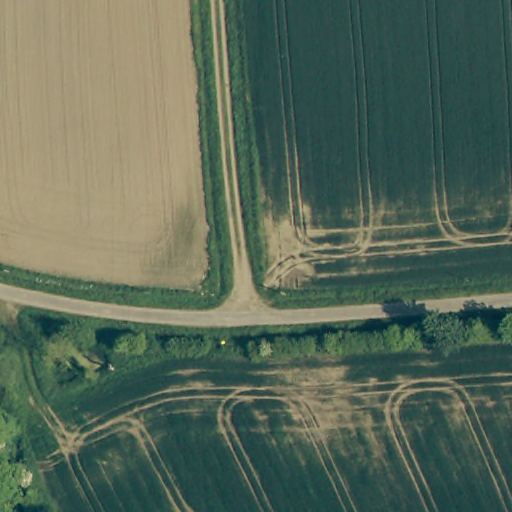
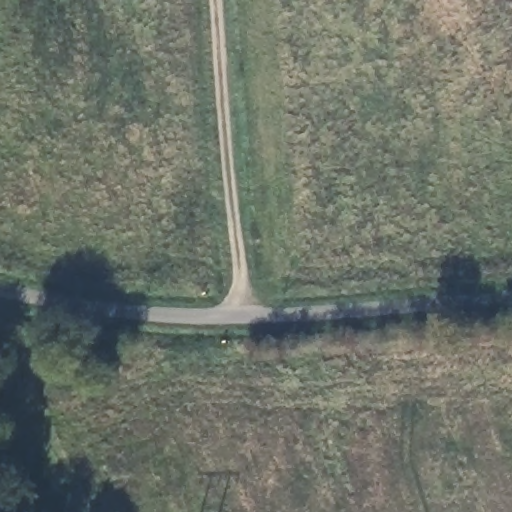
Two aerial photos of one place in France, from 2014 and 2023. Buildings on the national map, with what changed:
[]

